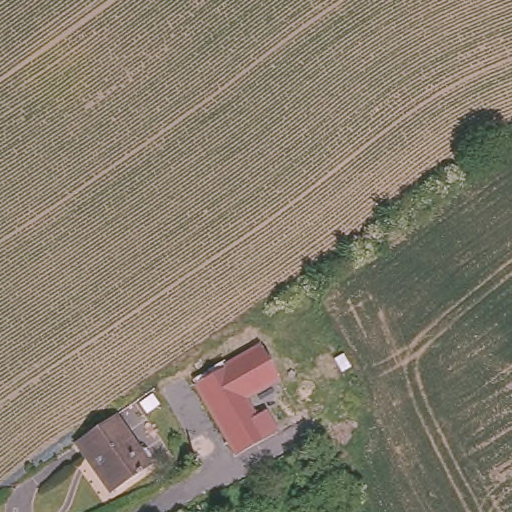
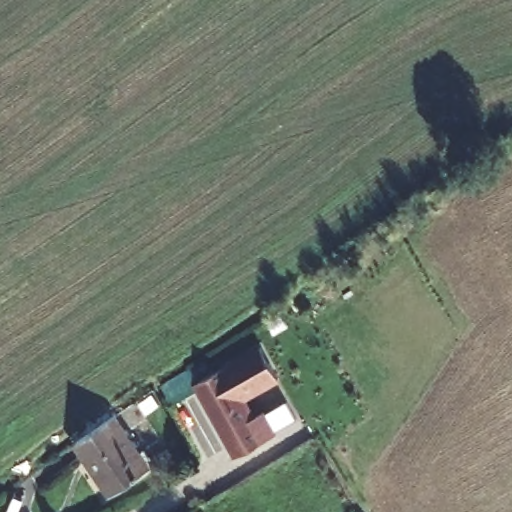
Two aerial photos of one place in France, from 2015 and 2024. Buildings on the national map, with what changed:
unchanged [(260,348),(276,379),(243,398),(252,417),(264,411),(275,435),(236,455),(196,385),(260,348)]
unchanged [(106,422),(116,416),(150,465),(115,490),(90,455),(87,456),(77,442),(106,422)]

